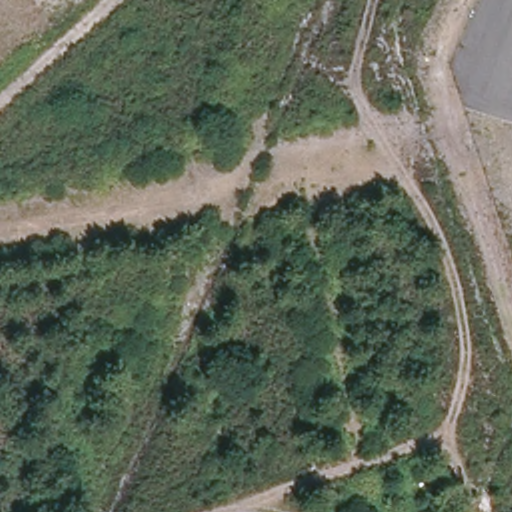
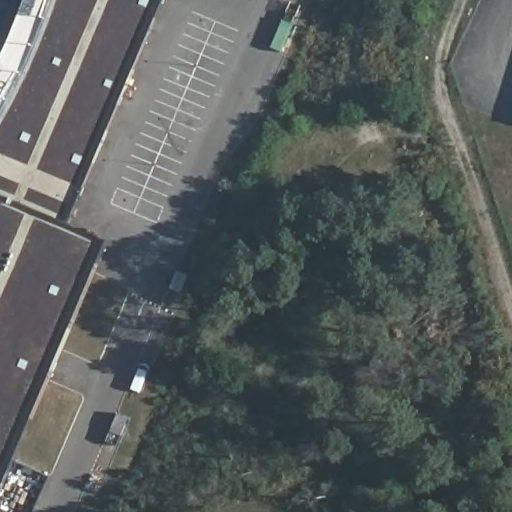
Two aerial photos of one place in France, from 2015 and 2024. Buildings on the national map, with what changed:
new [(0,196),(0,118),(6,110),(19,84),(30,61),(42,33),(51,9),(54,0),(161,0),(66,225),(0,196)]
new [(0,196),(66,225),(106,243),(0,493),(0,196)]

